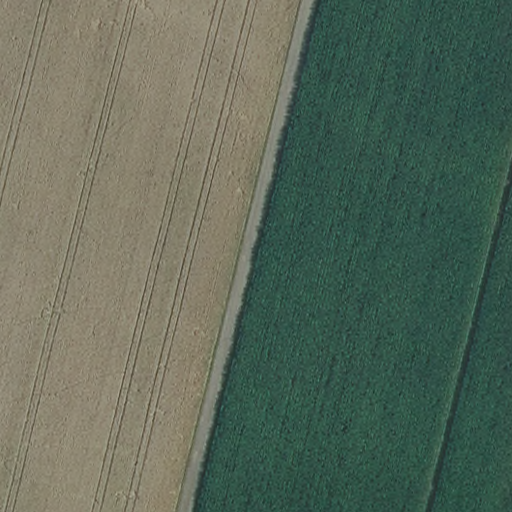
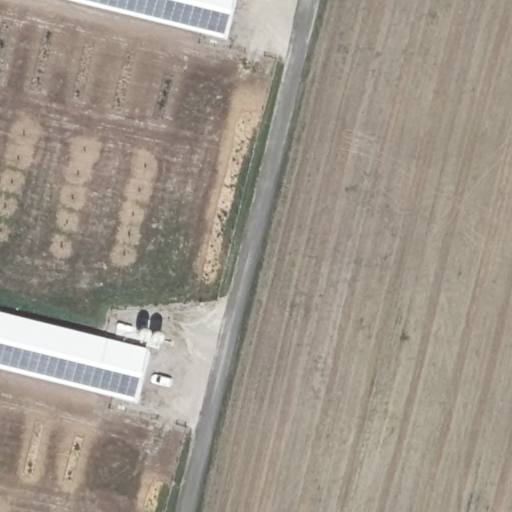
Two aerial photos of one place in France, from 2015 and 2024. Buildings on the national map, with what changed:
new [(64,0),(233,0),(224,38),(64,0)]
new [(147,349),(135,401),(0,368),(0,311),(45,322),(147,349)]

